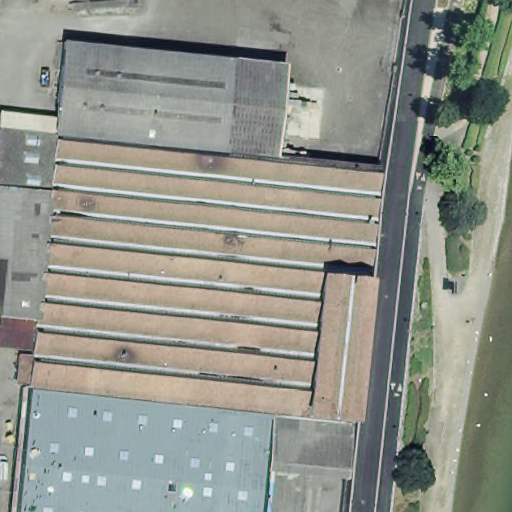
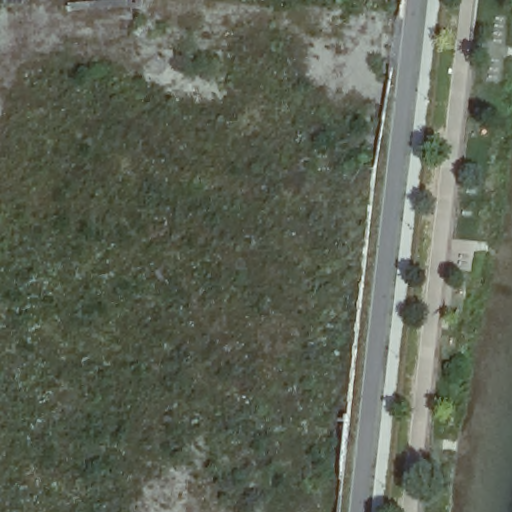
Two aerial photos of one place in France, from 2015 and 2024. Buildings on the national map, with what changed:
demolished [(270,464),(265,512),(16,512),(28,386),(32,387),(32,385),(20,384),(24,355),(35,356),(37,349),(2,345),(10,258),(0,257),(0,173),(3,128),(59,134),(68,44),(229,60),(222,119),(220,151),(270,156),(380,169),(353,422),(275,413),(270,464)]
demolished [(312,139),(273,136),(279,84),(317,87),(312,139)]

